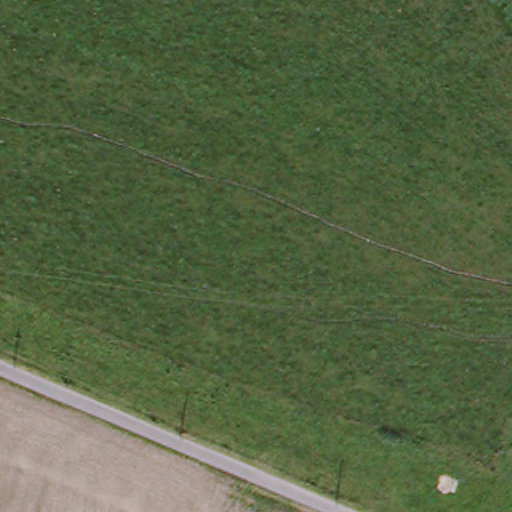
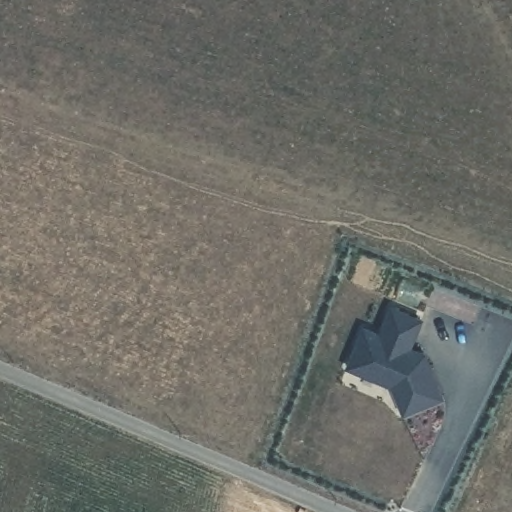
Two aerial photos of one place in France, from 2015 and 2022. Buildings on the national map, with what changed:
new [(375,337),(386,310),(416,322),(404,350),(415,354),(419,355),(437,398),(399,415),(387,387),(343,370),(359,331),(375,337)]

